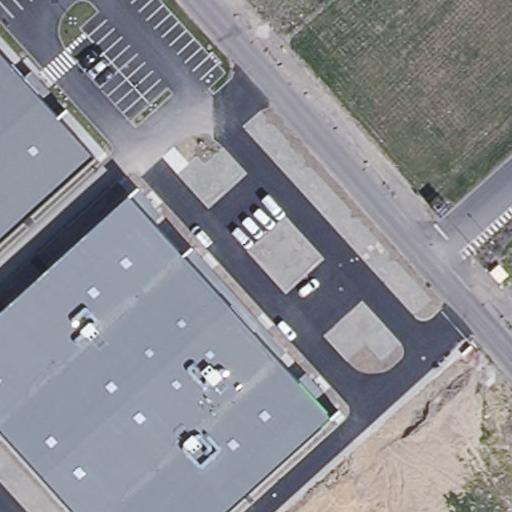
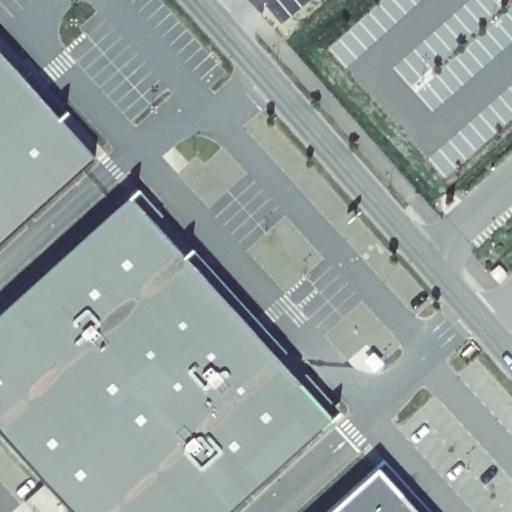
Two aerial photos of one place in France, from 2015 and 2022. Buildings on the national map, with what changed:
unchanged [(0,240),(0,54),(92,156),(0,240)]
unchanged [(228,512),(70,512),(0,435),(0,313),(130,195),(332,417),(228,512)]
new [(330,512),(376,471),(414,512),(330,512)]

